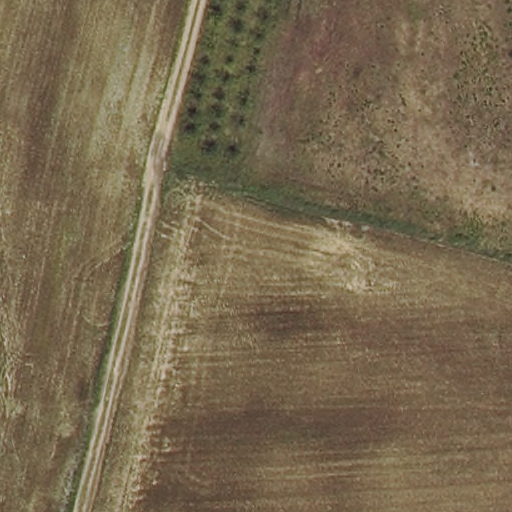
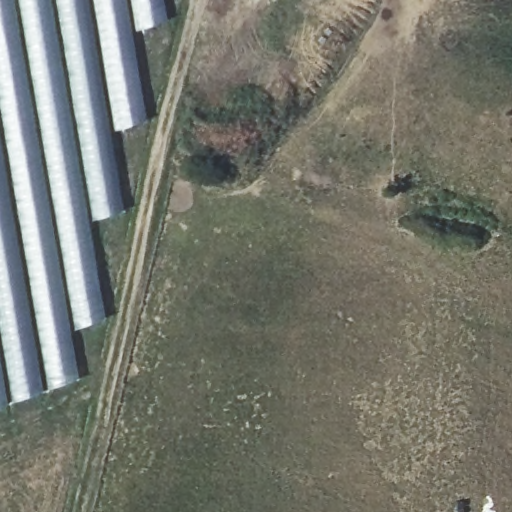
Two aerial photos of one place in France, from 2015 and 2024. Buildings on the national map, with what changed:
new [(168,21),(133,33),(148,121),(113,130),(125,210),(91,222),(108,318),(72,331),(80,379),(0,408),(0,0),(165,0),(168,21)]
new [(427,4),(420,0),(430,0),(427,4)]

